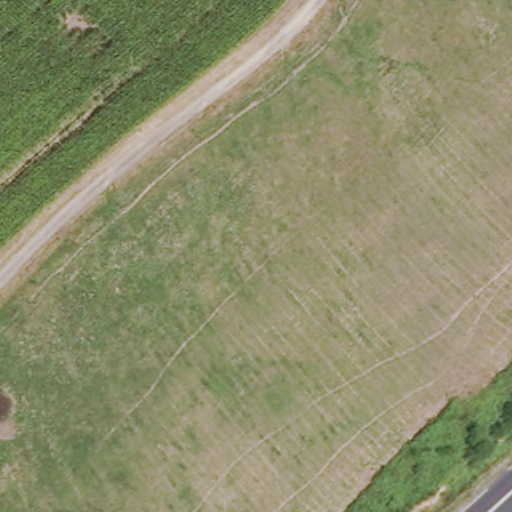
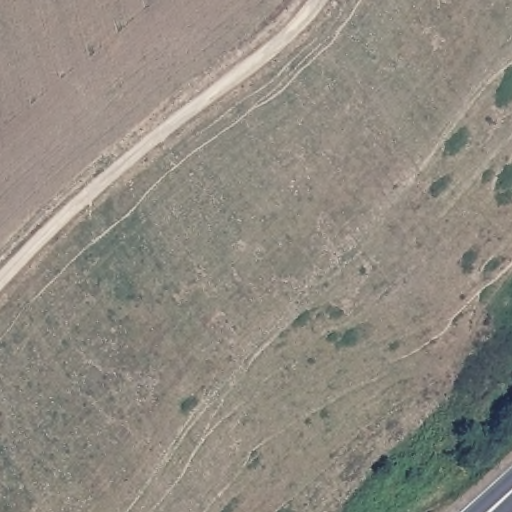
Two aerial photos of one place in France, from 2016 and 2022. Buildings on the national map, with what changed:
[]

